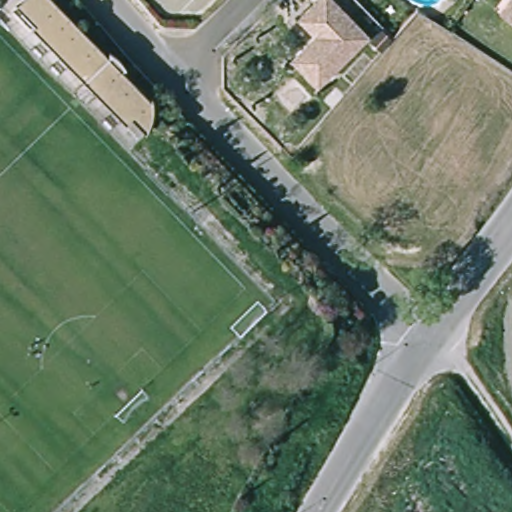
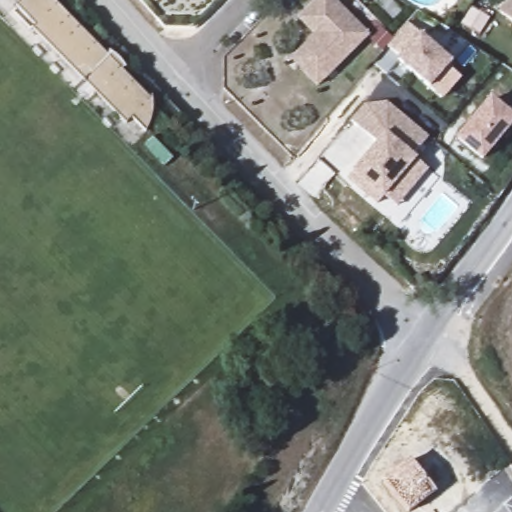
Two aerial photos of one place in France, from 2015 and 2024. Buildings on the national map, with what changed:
unchanged [(160,116),(149,136),(135,124),(128,129),(33,35),(40,30),(18,8),(27,0),(56,0),(159,104),(160,116)]
unchanged [(324,34),(309,18),(328,0),(338,0),(372,36),(322,84),(304,64),(298,57),(324,34)]
unchanged [(505,14),(512,4),(512,18),(505,14)]
new [(420,34),(453,63),(430,90),(398,60),(388,48),(408,23),(420,34)]
new [(490,98),(512,117),(512,127),(482,162),(455,139),(490,98)]
new [(365,105),(388,103),(429,138),(414,157),(417,160),(430,171),(398,209),(385,198),(377,206),(347,180),(354,172),(375,144),(350,122),(365,105)]
new [(410,511),(384,479),(410,458),(437,492),(410,511)]

